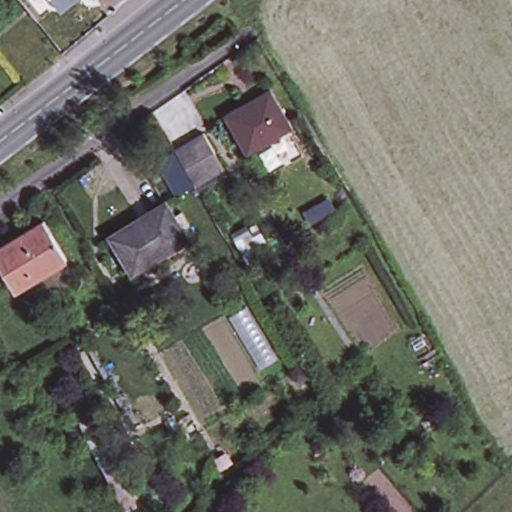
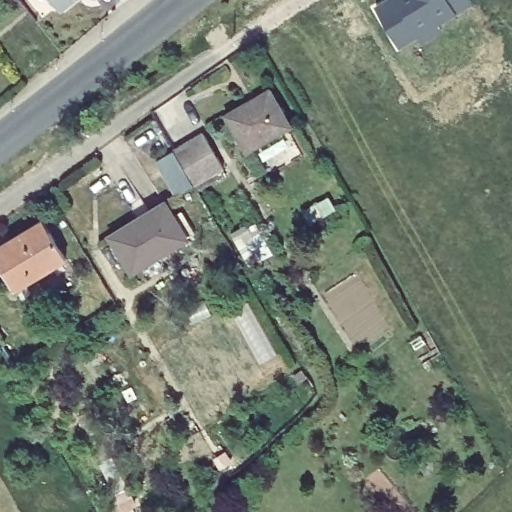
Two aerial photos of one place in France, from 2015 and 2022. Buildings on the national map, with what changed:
unchanged [(60,9),(52,0),(79,0),(76,2),(66,10),(60,9)]
new [(386,0),(473,0),(475,3),(440,24),(443,30),(422,42),(419,36),(401,48),(375,7),(386,0)]
unchanged [(270,89),(293,126),(248,155),(225,117),(270,89)]
unchanged [(201,194),(197,188),(177,153),(190,146),(205,137),(225,172),(220,174),(223,180),(201,194)]
unchanged [(164,202),(185,240),(130,271),(108,233),(164,202)]
unchanged [(45,221),(67,258),(15,292),(0,267),(0,248),(45,221)]
unchanged [(98,438),(112,461),(101,467),(87,444),(98,438)]

